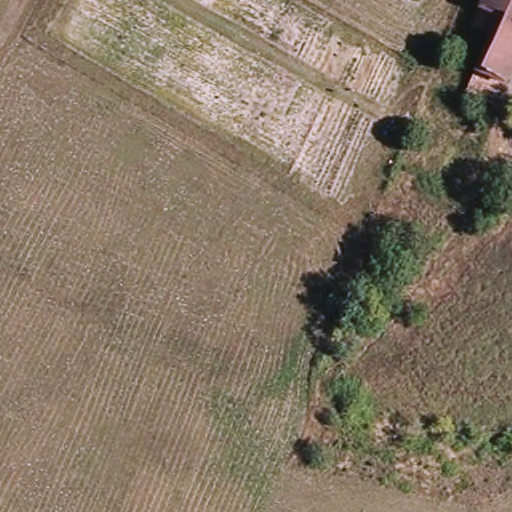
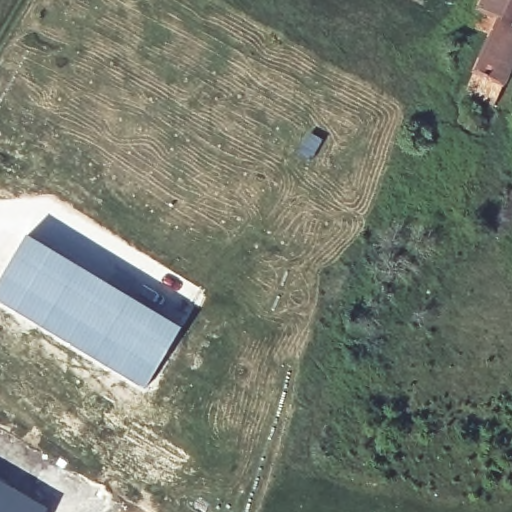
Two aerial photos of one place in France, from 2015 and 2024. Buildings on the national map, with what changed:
unchanged [(492,77),(474,68),(500,20),(474,5),(476,0),(512,0),(512,40),(492,77)]
new [(68,257),(182,327),(144,390),(0,303),(0,278),(27,234),(68,257)]
demolished [(264,401),(284,408),(273,439),(253,432),(264,401)]
new [(0,512),(0,494),(30,512),(0,512)]

